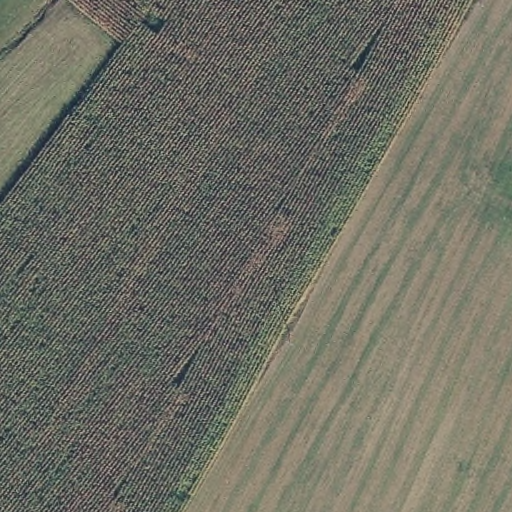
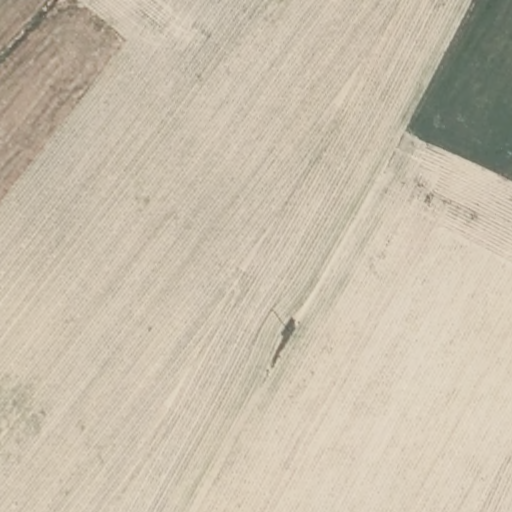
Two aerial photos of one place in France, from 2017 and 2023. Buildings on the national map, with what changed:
[]

